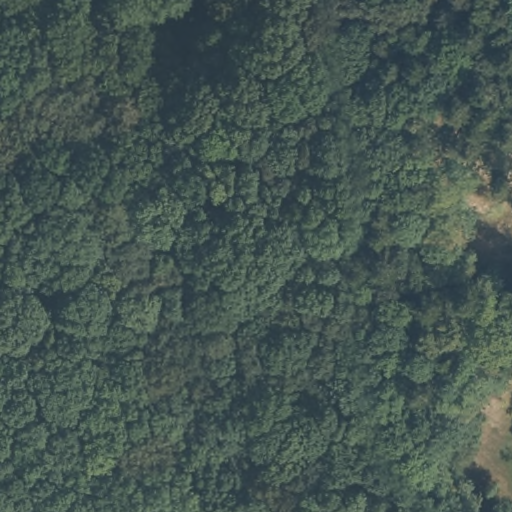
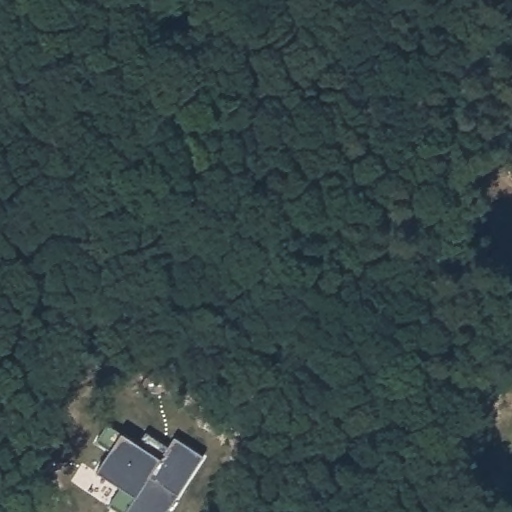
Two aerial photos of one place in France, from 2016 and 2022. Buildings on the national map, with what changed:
new [(107,506),(117,486),(96,471),(109,452),(95,443),(107,423),(121,432),(136,442),(145,430),(169,444),(175,437),(202,454),(168,512),(118,512),(107,506)]

